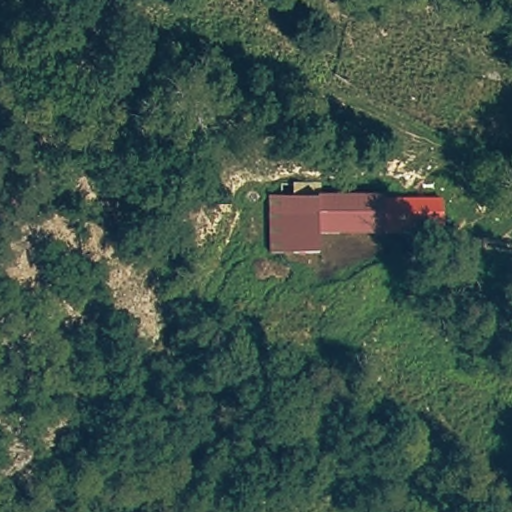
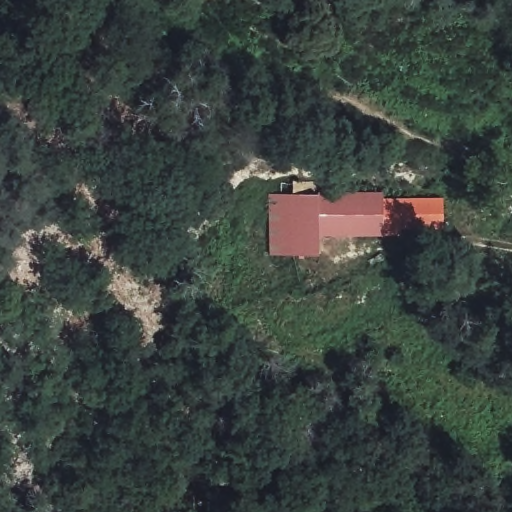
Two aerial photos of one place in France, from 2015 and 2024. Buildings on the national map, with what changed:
unchanged [(323,240),(322,255),(280,258),(281,201),(296,201),(296,188),(326,188),(326,197),(386,197),(386,204),(386,227),(386,240),(323,240)]
unchanged [(448,196),(449,227),(386,227),(386,204),(386,197),(448,196)]

